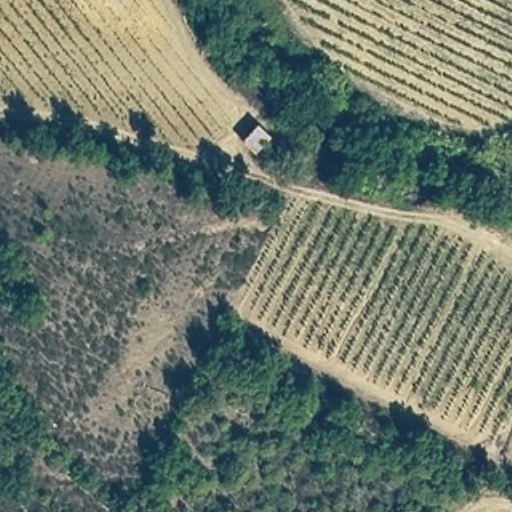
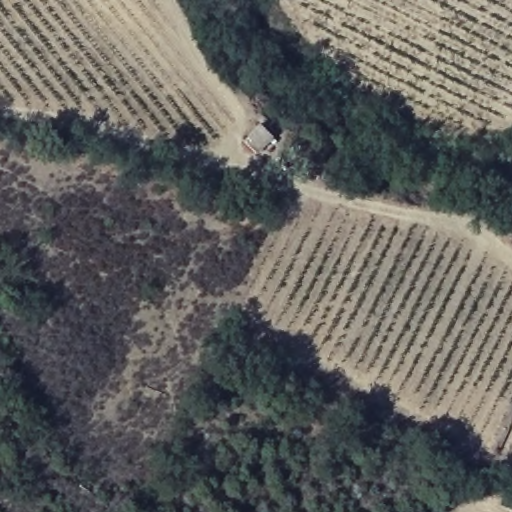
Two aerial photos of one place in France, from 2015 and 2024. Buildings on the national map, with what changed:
unchanged [(260,120),(272,137),(257,149),(245,138),(260,120)]

